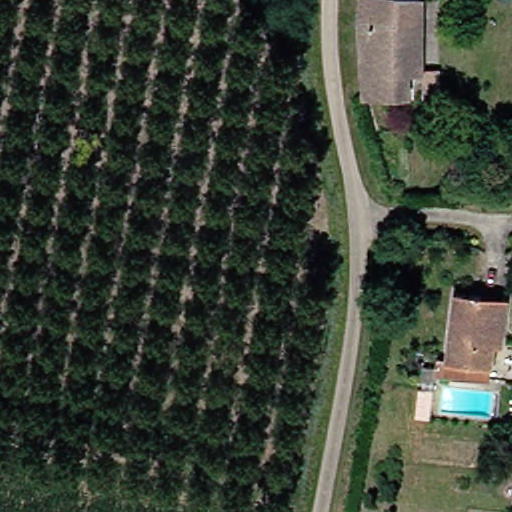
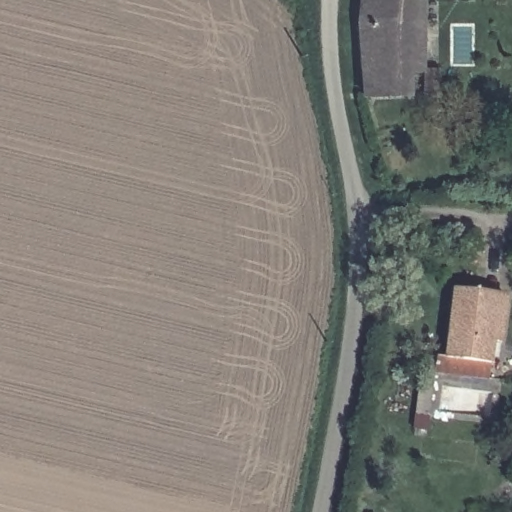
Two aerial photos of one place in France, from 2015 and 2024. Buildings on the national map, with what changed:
unchanged [(416,6),(415,74),(402,74),(400,101),(357,100),(348,31),(350,0),(416,0),(416,6)]
unchanged [(430,361),(432,336),(433,327),(437,292),(461,293),(487,295),(483,342),(481,363),(480,376),(429,373),(430,361)]

